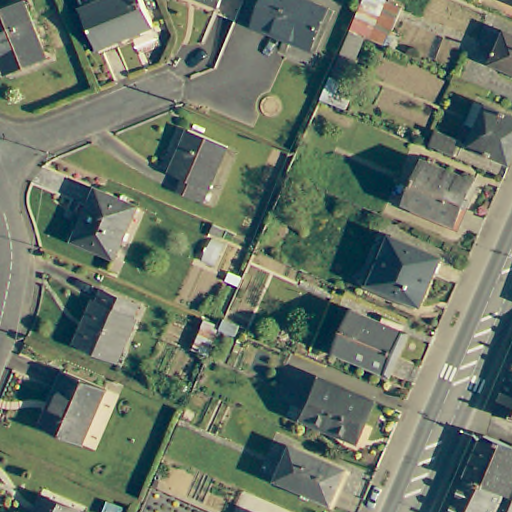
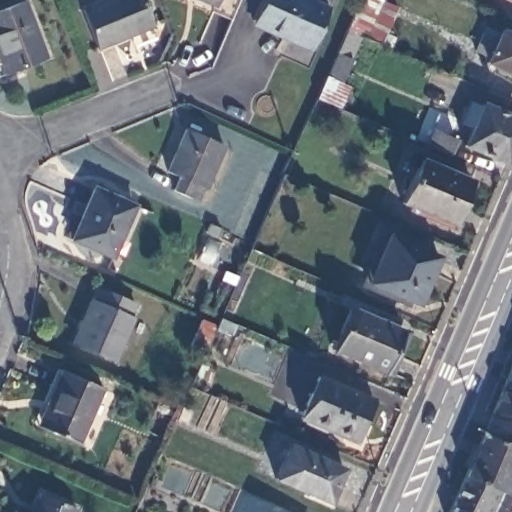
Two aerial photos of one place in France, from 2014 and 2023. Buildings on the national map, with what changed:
unchanged [(91,47),(75,10),(97,0),(136,0),(146,24),(91,47)]
unchanged [(206,0),(219,0),(216,5),(206,0)]
unchanged [(302,0),(323,9),(305,50),(286,42),(288,37),(251,22),(261,0),(302,0)]
unchanged [(396,10),(380,47),(362,39),(358,37),(343,31),(356,0),(378,0),(377,2),(396,10)]
unchanged [(7,76),(0,60),(0,13),(19,6),(42,61),(7,76)]
unchanged [(491,64),(493,58),(479,52),(489,30),(503,36),(505,32),(512,36),(512,73),(491,64)]
unchanged [(337,87),(345,90),(335,111),(313,102),(343,31),(358,37),(337,87)]
unchanged [(480,131),(468,126),(478,102),(490,107),(490,106),(512,115),(512,164),(472,147),(480,131)]
unchanged [(196,202),(170,191),(175,179),(165,174),(184,131),(221,148),(196,202)]
unchanged [(440,131),(465,141),(459,156),(433,145),(440,131)]
unchanged [(398,204),(417,161),(472,185),(462,209),(456,207),(448,226),(398,204)]
unchanged [(111,257),(71,239),(94,187),(134,205),(111,257)]
unchanged [(368,285),(380,262),(375,260),(385,236),(436,257),(415,306),(368,285)]
unchanged [(111,358),(71,341),(91,297),(94,298),(100,286),(134,301),(130,312),(132,313),(111,358)]
unchanged [(398,332),(380,373),(330,352),(347,311),(398,332)]
unchanged [(512,356),(512,378),(504,375),(512,356)]
unchanged [(74,443),(40,428),(49,409),(42,407),(59,371),(99,388),(74,443)]
unchanged [(490,408),(504,375),(512,378),(512,413),(490,408)]
unchanged [(331,436),(296,420),(314,378),(368,402),(350,442),(331,433),(331,436)]
unchanged [(510,493),(451,468),(470,427),(473,427),(512,444),(512,447),(503,467),(512,471),(512,494),(510,493)]
unchanged [(329,498),(275,476),(290,444),(343,467),(329,498)]
unchanged [(433,511),(451,468),(510,493),(503,512),(490,512),(485,510),(484,512),(435,512),(433,511)]
unchanged [(49,492),(80,505),(76,512),(41,512),(49,492)]
unchanged [(17,506),(31,512),(14,512),(17,506)]

